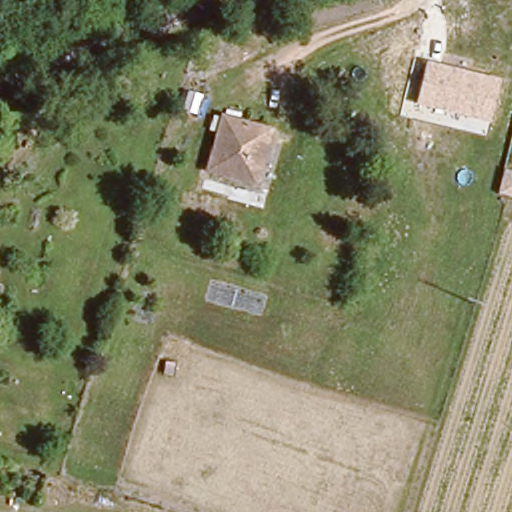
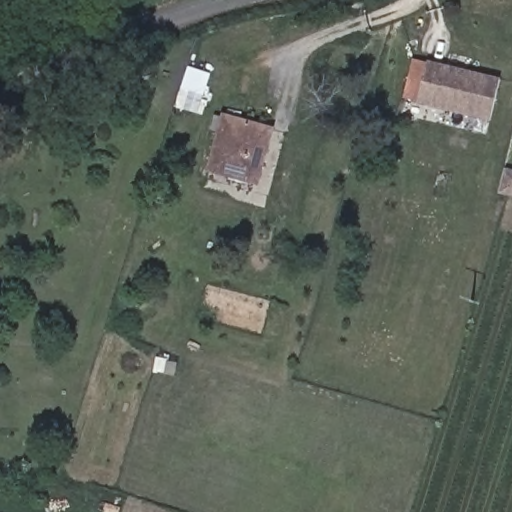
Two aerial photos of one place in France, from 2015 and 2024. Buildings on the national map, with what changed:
unchanged [(499,79),(490,121),(415,105),(427,61),(499,79)]
unchanged [(271,124),(255,177),(208,165),(222,111),(271,124)]

